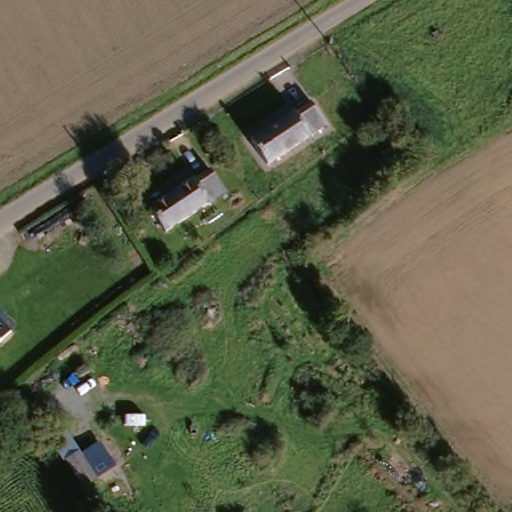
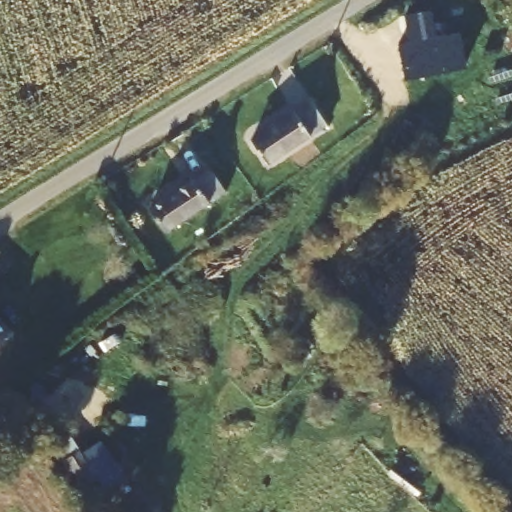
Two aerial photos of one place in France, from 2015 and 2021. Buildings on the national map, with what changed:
new [(397,43),(408,41),(402,15),(430,10),(436,36),(459,32),(467,69),(404,80),(397,43)]
unchanged [(293,111),(297,115),(315,104),(332,127),(270,167),(251,140),(293,111)]
unchanged [(192,176),(194,179),(214,166),(231,189),(163,232),(147,204),(192,176)]
unchanged [(13,326),(0,341),(0,315),(13,326)]
unchanged [(77,447),(95,478),(83,485),(64,455),(77,447)]

